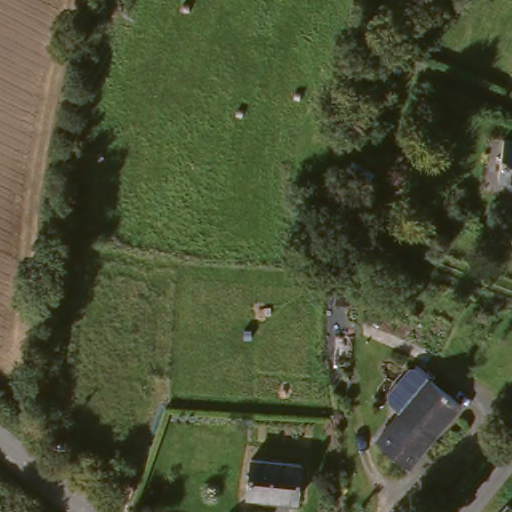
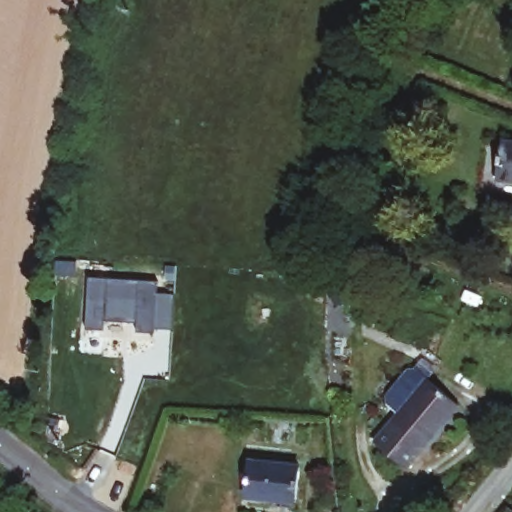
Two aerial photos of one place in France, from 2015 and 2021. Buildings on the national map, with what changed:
unchanged [(116,0),(114,9),(95,5),(96,0),(116,0)]
unchanged [(512,177),(501,176),(507,136),(512,137),(512,177)]
new [(59,264),(68,265),(67,273),(58,272),(59,264)]
new [(175,328),(156,327),(156,335),(134,333),(134,325),(100,322),(100,332),(83,331),(87,275),(159,280),(159,292),(176,293),(175,328)]
unchanged [(431,376),(464,404),(412,466),(379,438),(431,376)]
unchanged [(253,457),(304,462),(300,501),(249,496),(253,457)]

